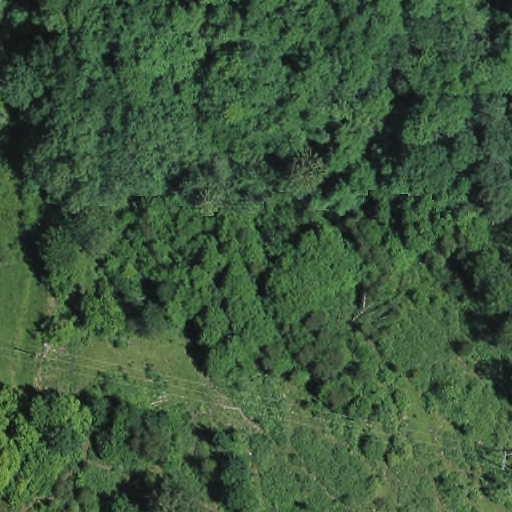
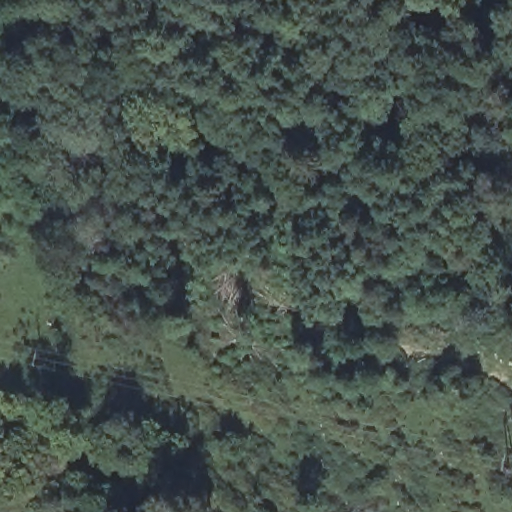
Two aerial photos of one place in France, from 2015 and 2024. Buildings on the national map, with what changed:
[]

